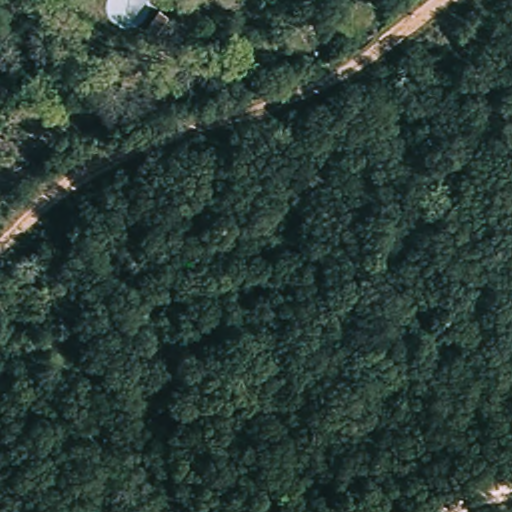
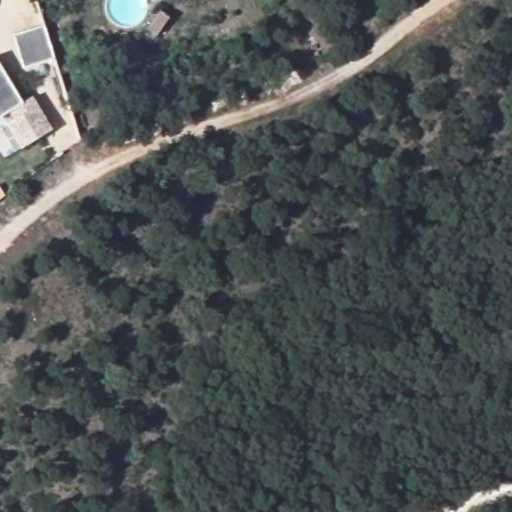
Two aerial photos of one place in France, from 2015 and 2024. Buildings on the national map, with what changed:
new [(44,25),(54,59),(37,64),(22,69),(11,35),(26,30),(44,25)]
new [(22,103),(31,98),(51,130),(23,148),(8,124),(16,119),(11,111),(0,118),(0,66),(22,103)]
new [(1,195),(0,196),(0,193),(1,195)]

